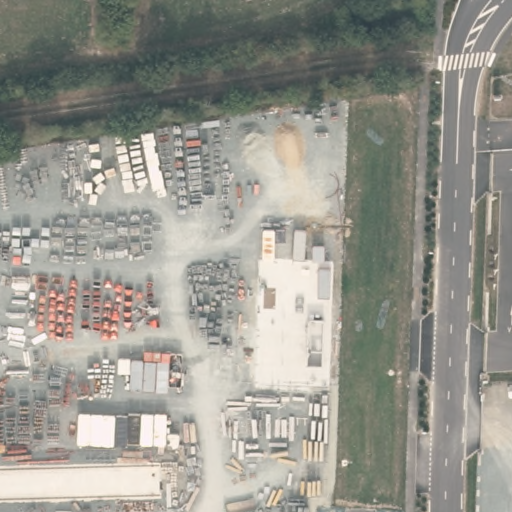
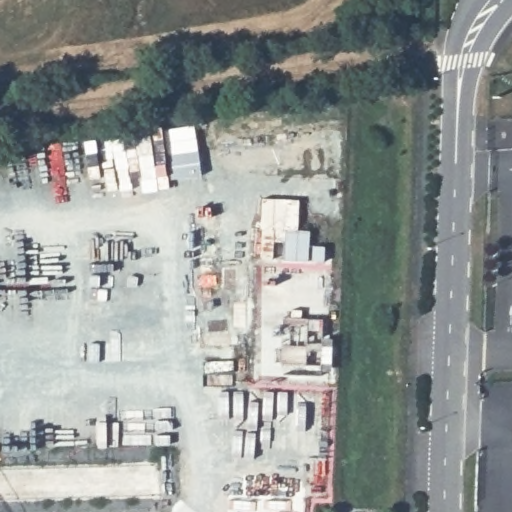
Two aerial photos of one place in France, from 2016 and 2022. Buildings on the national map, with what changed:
[]

